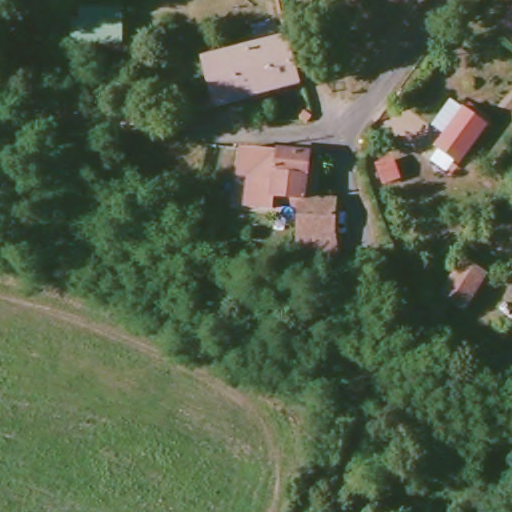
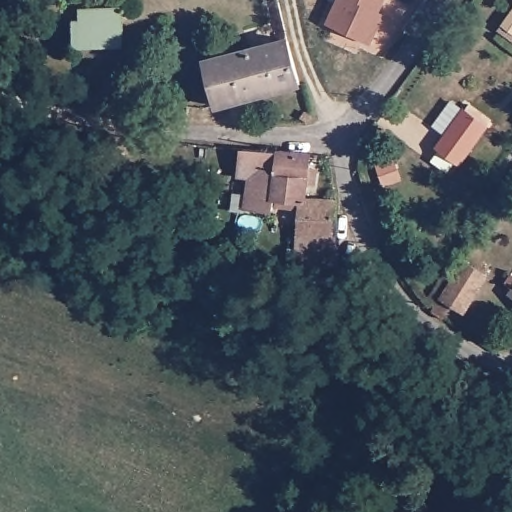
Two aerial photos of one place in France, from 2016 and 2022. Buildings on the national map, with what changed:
new [(387,17),(368,52),(317,26),(331,0),(385,0),(379,14),(387,17)]
unchanged [(75,44),(74,21),(81,20),(80,9),(122,4),(125,37),(75,44)]
unchanged [(493,38),(512,13),(512,38),(510,41),(512,42),(512,50),(507,46),(493,38)]
unchanged [(227,56),(245,50),(268,41),(290,33),(304,79),(283,86),(260,95),(241,101),(217,110),(202,66),(227,56)]
unchanged [(460,161),(435,145),(460,106),(483,121),(460,161)]
unchanged [(249,209),(252,176),(239,175),(241,150),(275,154),(306,157),(304,175),(309,175),(313,180),(312,190),(302,189),(302,206),(271,204),(270,211),(249,209)]
unchanged [(342,206),(345,240),(348,266),(335,265),(303,262),(303,235),(307,235),(309,204),(342,206)]
unchanged [(492,276),(470,310),(455,300),(446,313),(437,308),(470,261),(492,276)]
unchanged [(506,284),(511,276),(512,277),(512,288),(506,284)]
unchanged [(511,295),(512,293),(512,295),(511,295)]

